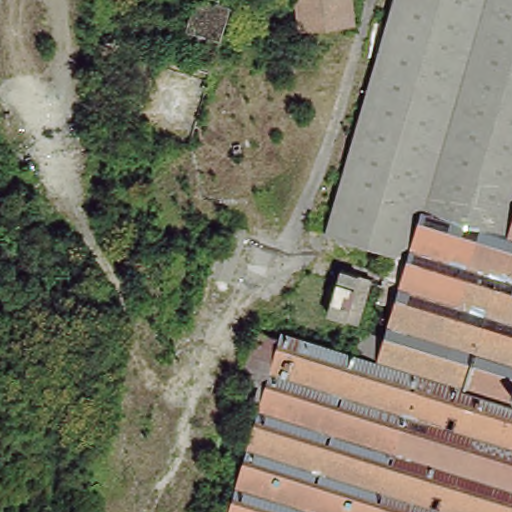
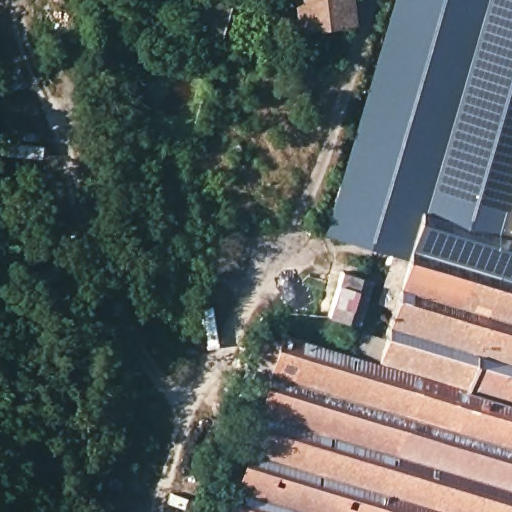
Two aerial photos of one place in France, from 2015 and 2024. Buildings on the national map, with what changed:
unchanged [(320,236),(338,173),(359,100),(379,29),(387,0),(512,0),(512,512),(223,512),(240,453),(254,405),(231,398),(237,377),(249,332),(273,339),(274,337),(348,356),(355,332),(378,337),(386,307),(372,303),(385,255),(320,236)]
unchanged [(351,24),(299,30),(295,0),(348,0),(351,24)]
unchanged [(250,232),(232,285),(207,276),(224,224),(250,232)]
unchanged [(326,314),(339,272),(369,281),(357,322),(326,314)]

